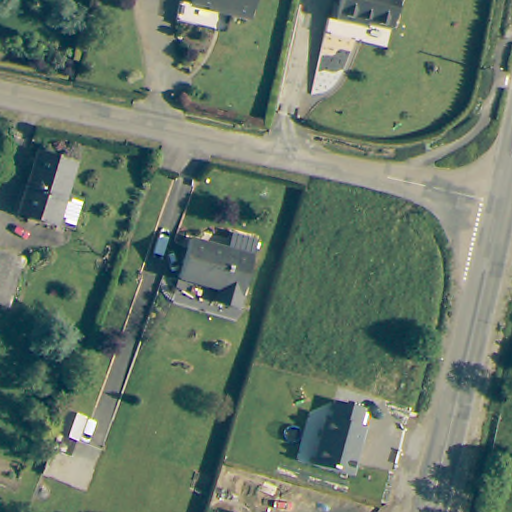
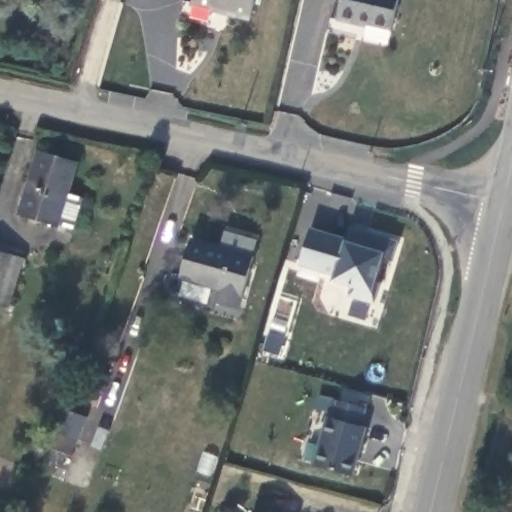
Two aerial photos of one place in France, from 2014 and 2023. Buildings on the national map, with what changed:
unchanged [(255,0),(250,21),(230,16),(231,14),(213,10),(214,7),(194,3),(195,0),(255,0)]
unchanged [(402,0),(395,33),(360,24),(359,26),(340,21),(344,0),(402,0)]
unchanged [(39,154),(78,166),(69,194),(86,199),(75,232),(58,227),(58,228),(19,215),(39,154)]
new [(398,241),(392,261),(384,258),(377,281),(381,282),(375,304),(349,297),(352,287),(333,282),(336,277),(299,266),(310,228),(347,239),(351,227),(398,241)]
unchanged [(181,277),(191,241),(229,250),(235,232),(259,238),(241,309),(177,292),(181,277)]
unchanged [(25,257),(9,304),(0,301),(0,249),(25,257)]
unchanged [(314,466),(326,417),(330,418),(335,400),(364,407),(361,424),(365,426),(356,476),(314,466)]
unchanged [(67,410),(85,416),(76,441),(58,435),(67,410)]

